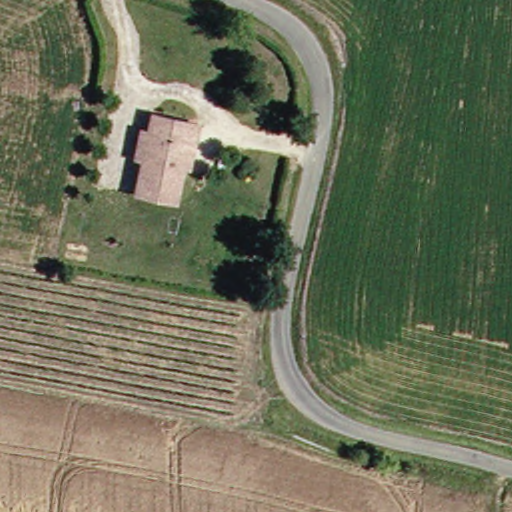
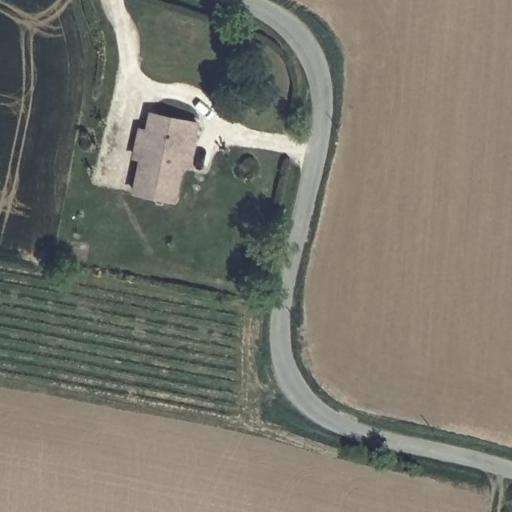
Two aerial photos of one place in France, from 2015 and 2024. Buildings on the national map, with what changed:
unchanged [(137,192),(141,156),(126,153),(130,127),(145,130),(149,112),(195,122),(192,140),(187,166),(179,164),(175,198),(137,192)]

